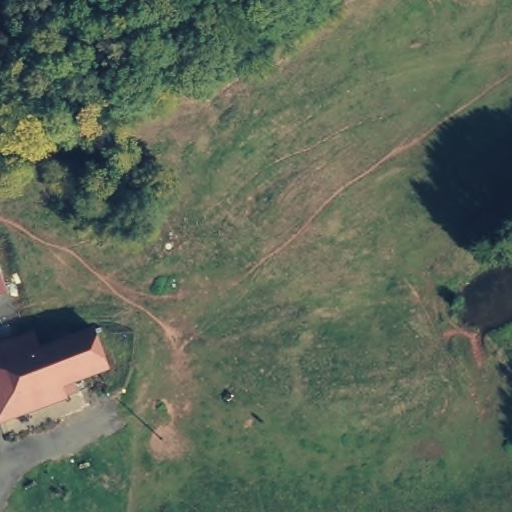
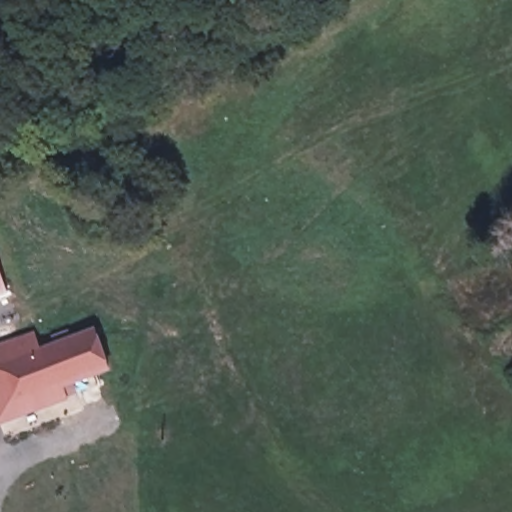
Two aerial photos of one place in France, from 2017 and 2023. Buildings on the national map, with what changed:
unchanged [(5,293),(0,295),(0,276),(5,293)]
unchanged [(42,344),(103,327),(115,369),(71,387),(75,399),(0,424),(0,343),(35,331),(42,344)]

